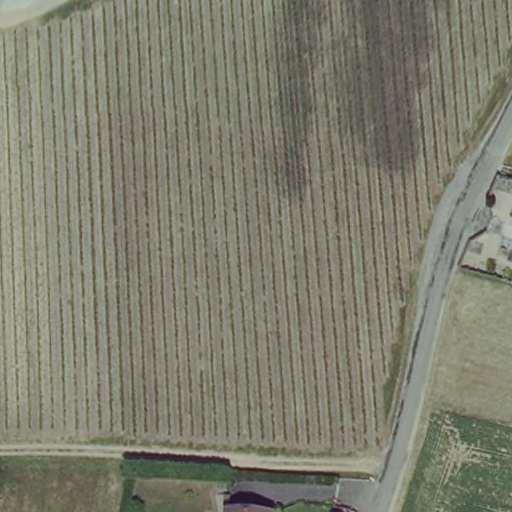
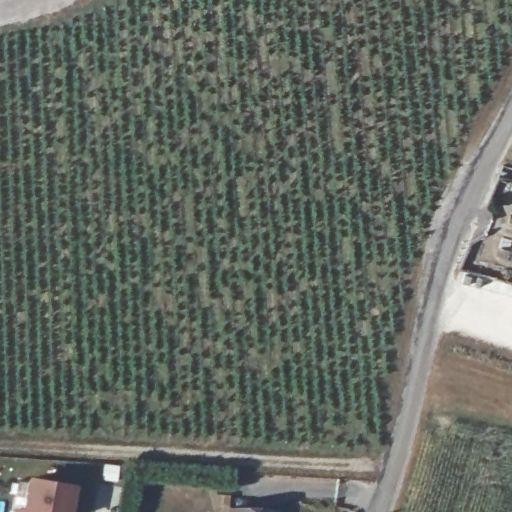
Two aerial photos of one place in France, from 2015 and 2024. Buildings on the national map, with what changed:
new [(19,510),(27,511),(32,478),(74,485),(70,512),(19,512),(19,510)]

